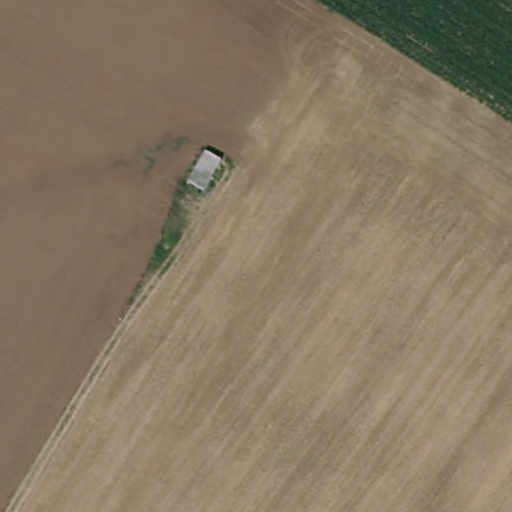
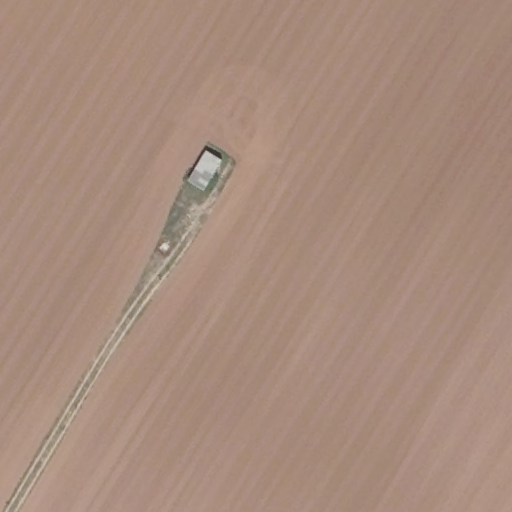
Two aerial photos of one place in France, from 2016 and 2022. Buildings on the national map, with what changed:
unchanged [(220,158),(199,191),(181,179),(203,146),(220,158)]

